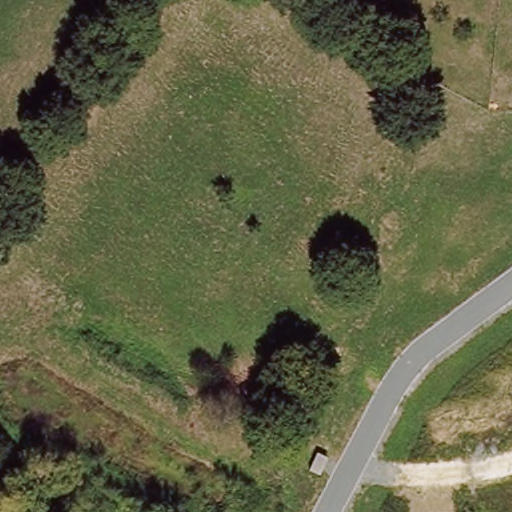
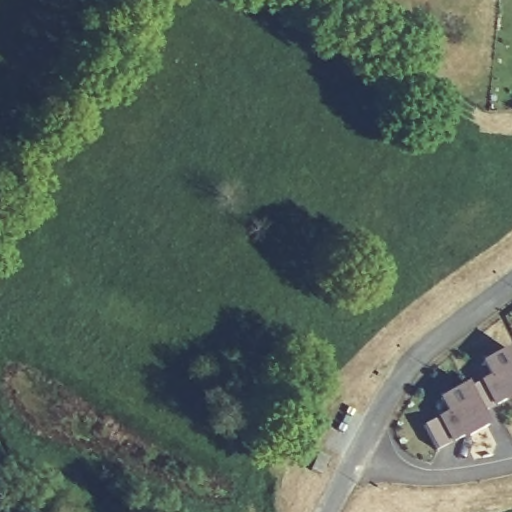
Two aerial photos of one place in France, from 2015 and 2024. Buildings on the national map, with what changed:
new [(440,400),(464,387),(466,391),(490,378),(482,363),(507,351),(512,360),(512,400),(511,398),(479,415),(486,427),(469,437),(468,435),(436,451),(422,427),(447,414),(440,400)]

